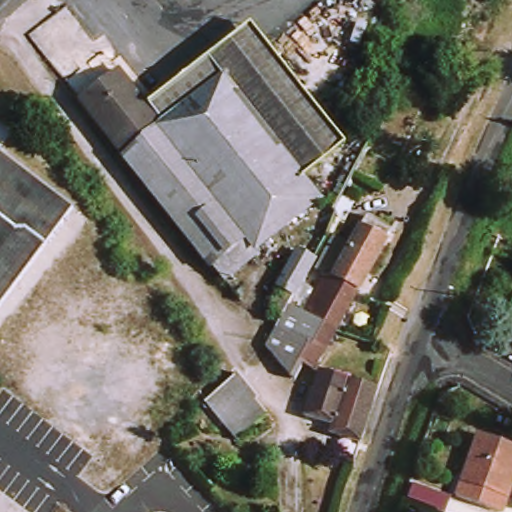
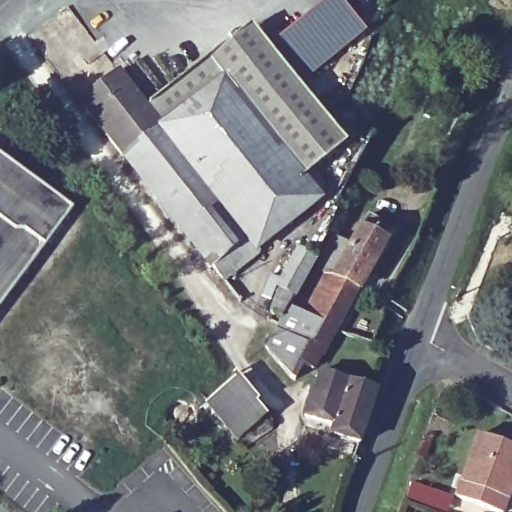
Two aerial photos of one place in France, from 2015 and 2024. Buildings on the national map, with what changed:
new [(334,0),(353,23),(357,19),(368,32),(312,78),(278,39),(326,0),(334,0)]
unchanged [(165,124),(150,105),(253,25),(345,144),(302,178),(225,78),(165,124)]
unchanged [(321,202),(259,249),(262,253),(227,280),(215,265),(213,268),(126,159),(129,155),(86,100),(123,71),(150,105),(165,124),(225,78),(302,178),(321,202)]
unchanged [(0,306),(0,155),(74,209),(0,306)]
unchanged [(329,274),(318,267),(335,234),(353,243),(369,214),(394,227),(361,289),(359,289),(339,327),(309,312),(329,274)]
unchanged [(304,237),(302,247),(292,245),(294,234),(304,237)]
unchanged [(287,317),(274,310),(283,284),(301,251),(316,259),(294,304),(287,317)]
unchanged [(296,381),(272,348),(287,317),(294,304),(309,312),(339,327),(318,366),(307,362),(296,381)]
unchanged [(322,391),(328,374),(380,388),(363,443),(335,436),(337,428),(310,416),(319,391),(322,391)]
unchanged [(206,404),(235,382),(266,422),(237,444),(206,404)]
unchanged [(462,497),(482,436),(512,446),(512,500),(508,512),(462,497)]

